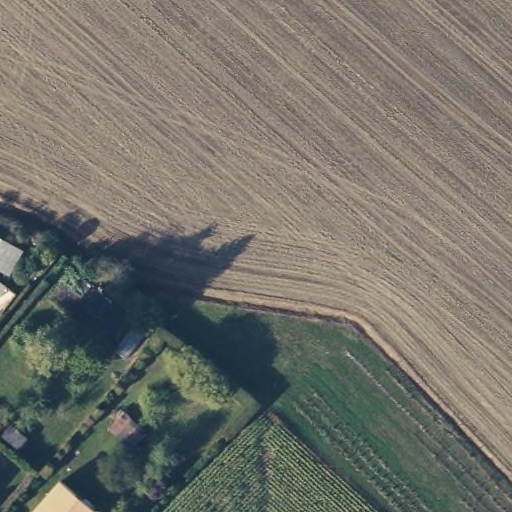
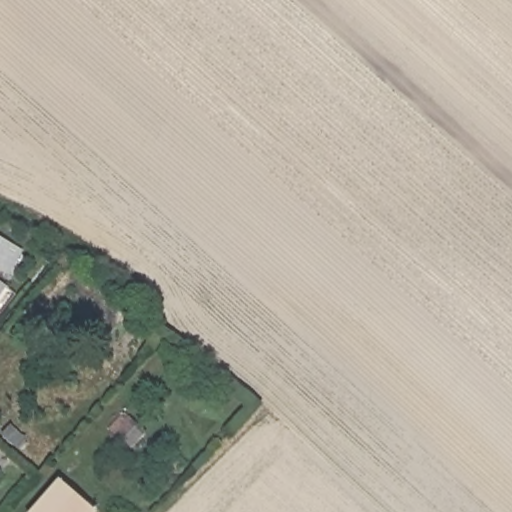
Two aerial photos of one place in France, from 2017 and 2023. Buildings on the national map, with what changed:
unchanged [(0,266),(0,239),(23,252),(12,273),(0,266)]
unchanged [(143,428),(131,441),(115,426),(128,414),(143,428)]
unchanged [(63,481),(97,512),(33,512),(63,481)]

